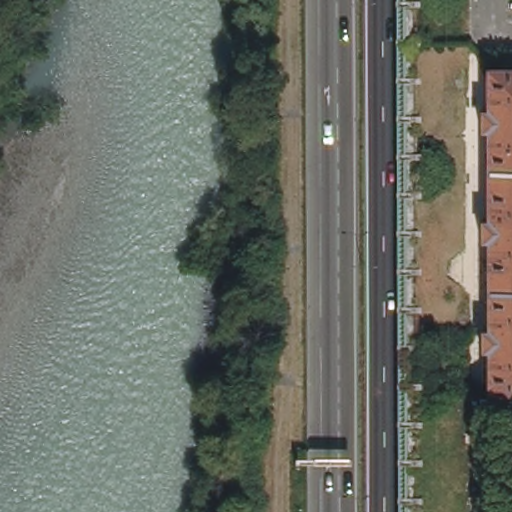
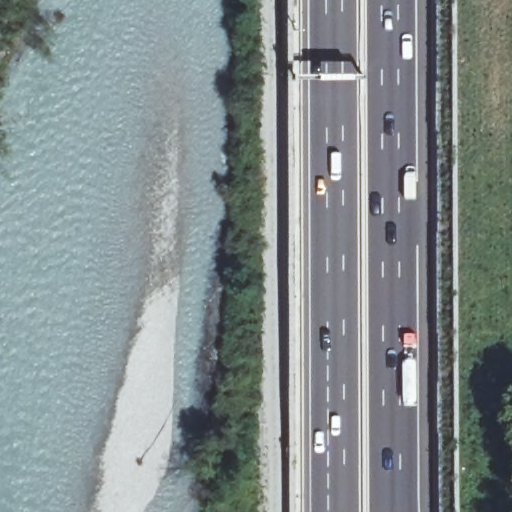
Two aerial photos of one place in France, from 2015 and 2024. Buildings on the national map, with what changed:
demolished [(489,352),(489,347),(482,347),(482,329),(489,329),(489,323),(489,318),(489,290),(489,244),(489,237),(482,237),(482,219),(489,219),(489,212),(488,166),(488,162),(488,138),(488,133),(488,127),(482,127),(482,109),(488,109),(488,104),(488,99),(488,68),(512,68),(512,388),(490,388),(490,357),(489,352)]

